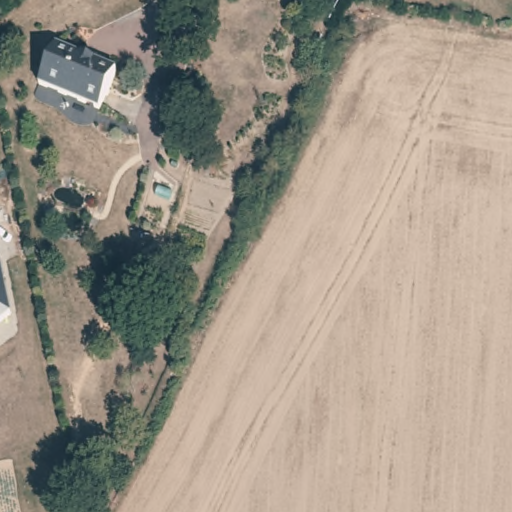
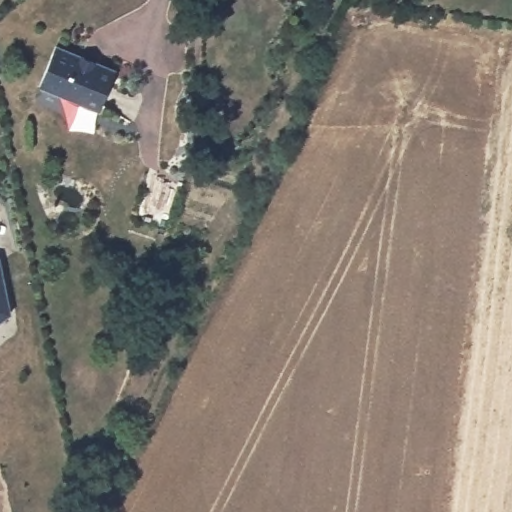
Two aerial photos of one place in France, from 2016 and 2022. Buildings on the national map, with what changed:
unchanged [(100,111),(40,85),(56,45),(117,70),(100,111)]
unchanged [(0,321),(0,265),(10,313),(0,321)]

